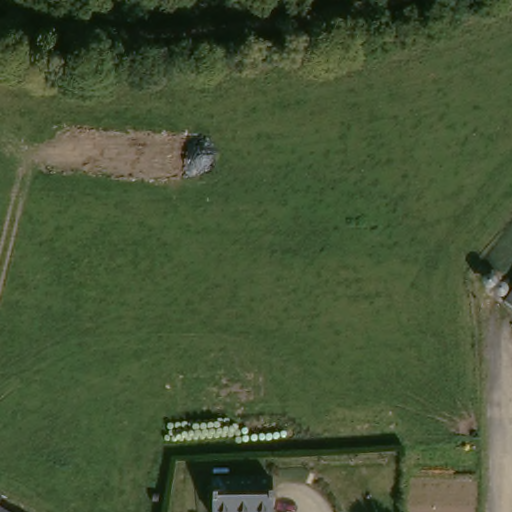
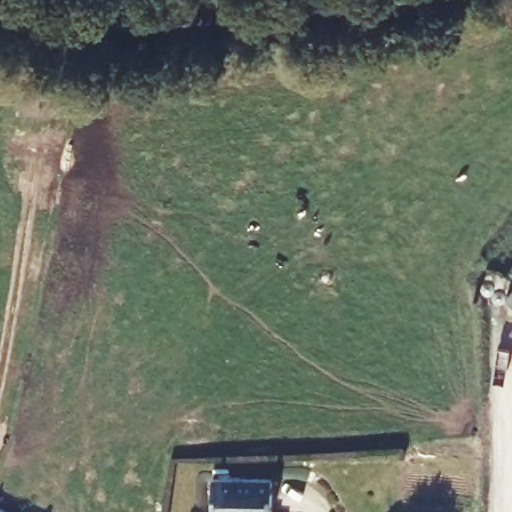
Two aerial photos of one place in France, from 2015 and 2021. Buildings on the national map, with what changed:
unchanged [(512,295),(512,299),(510,297),(512,295)]
unchanged [(275,512),(216,512),(215,480),(275,483),(275,512)]
unchanged [(0,512),(0,506),(11,512),(0,512)]

